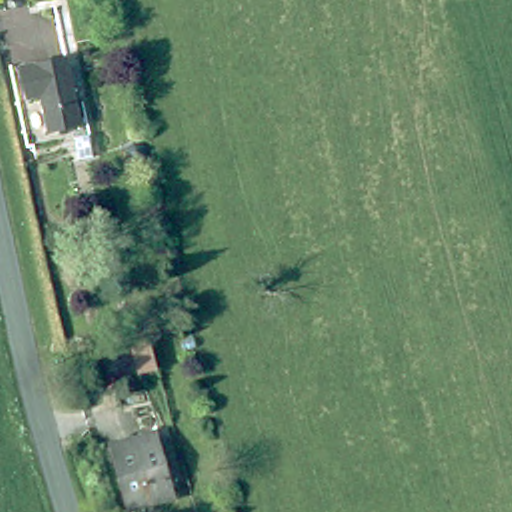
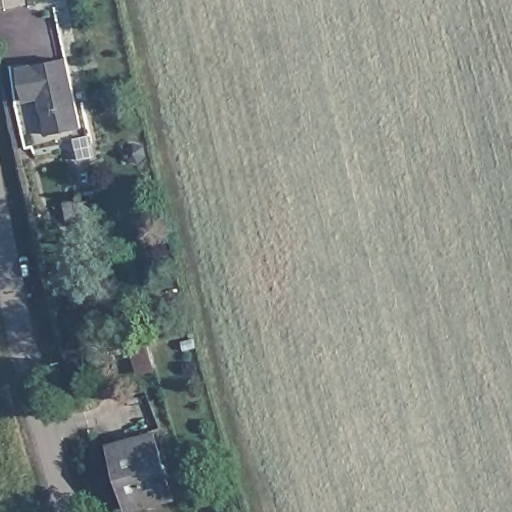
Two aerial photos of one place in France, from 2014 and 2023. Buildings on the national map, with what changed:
unchanged [(40,94),(25,96),(18,64),(66,55),(80,124),(48,130),(40,94)]
unchanged [(66,225),(65,216),(63,203),(90,199),(91,211),(75,214),(77,224),(66,225)]
unchanged [(111,442),(153,431),(171,492),(129,505),(111,442)]

